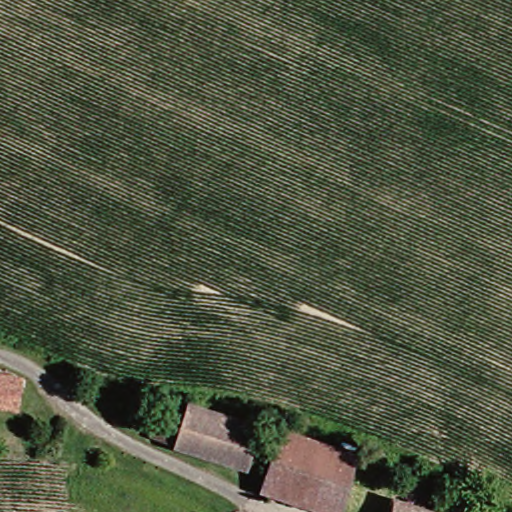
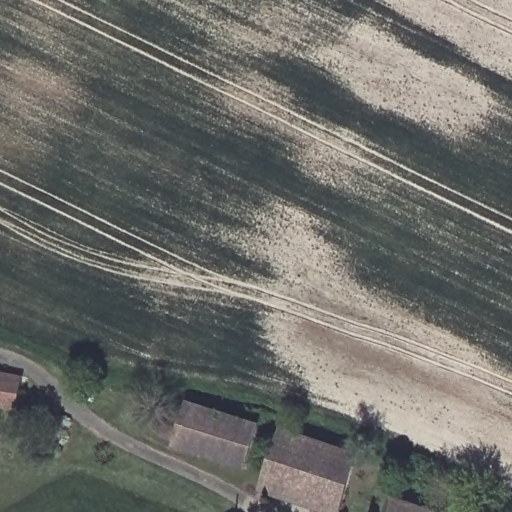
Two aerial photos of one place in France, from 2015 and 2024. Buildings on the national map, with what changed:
unchanged [(7,417),(0,415),(0,377),(16,381),(7,417)]
unchanged [(240,469),(166,449),(145,444),(151,416),(178,423),(184,406),(250,426),(240,469)]
unchanged [(274,438),(347,456),(329,512),(316,512),(256,497),(274,438)]
unchanged [(389,499),(429,512),(384,512),(389,499)]

